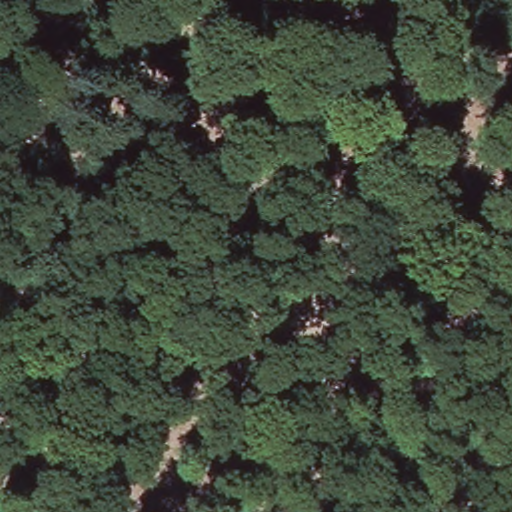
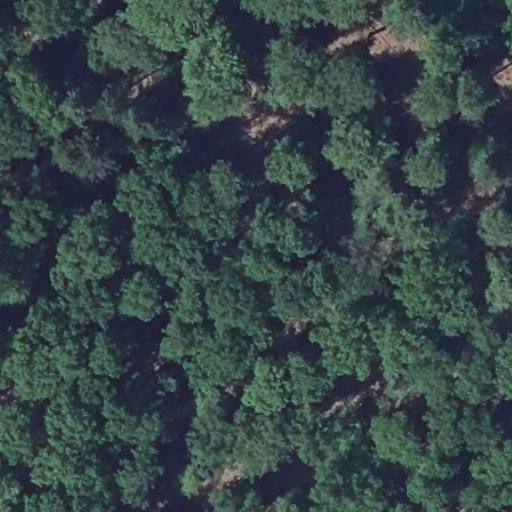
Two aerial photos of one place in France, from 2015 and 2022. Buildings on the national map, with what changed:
unchanged [(192,36),(207,25),(217,39),(202,50),(192,36)]

